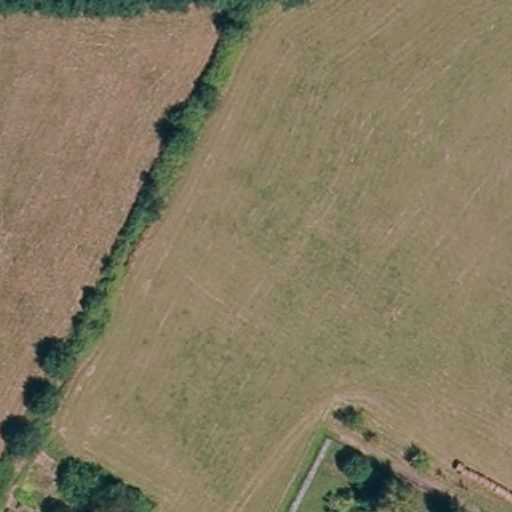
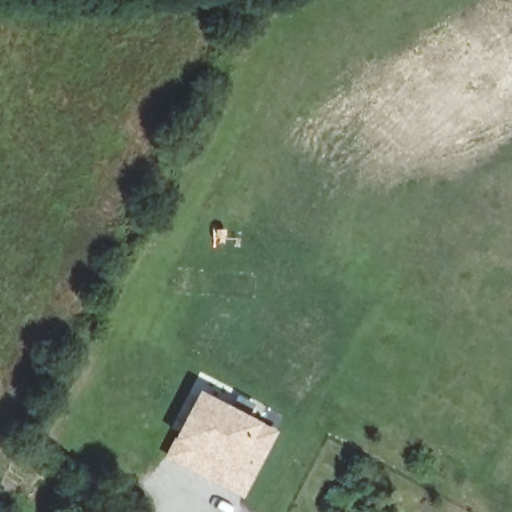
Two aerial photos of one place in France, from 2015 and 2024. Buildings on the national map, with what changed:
new [(164,458),(173,440),(198,391),(261,423),(278,432),(243,500),(164,458)]

